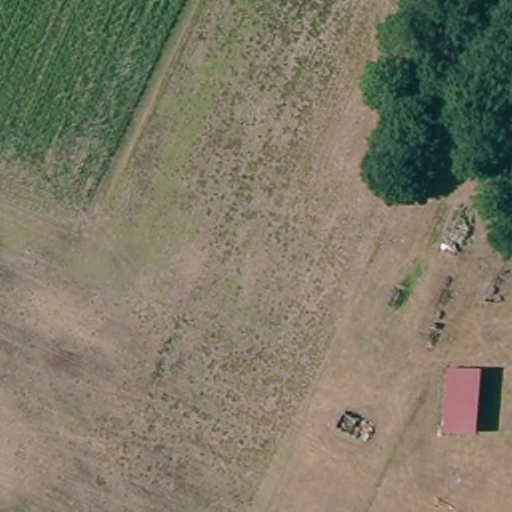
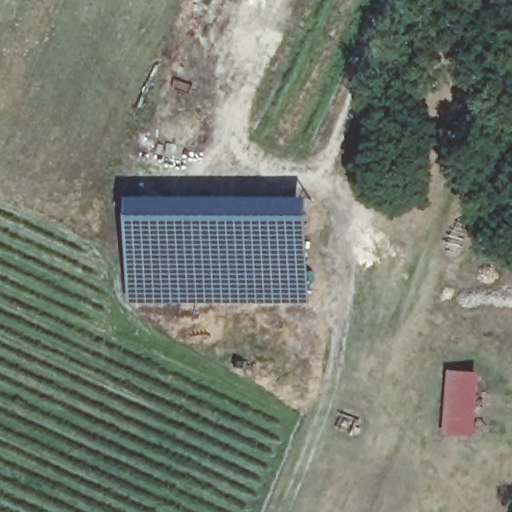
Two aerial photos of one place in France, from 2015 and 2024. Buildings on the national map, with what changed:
new [(312,304),(130,305),(130,198),(311,198),(312,304)]
unchanged [(477,372),(473,436),(436,434),(443,368),(477,372)]

